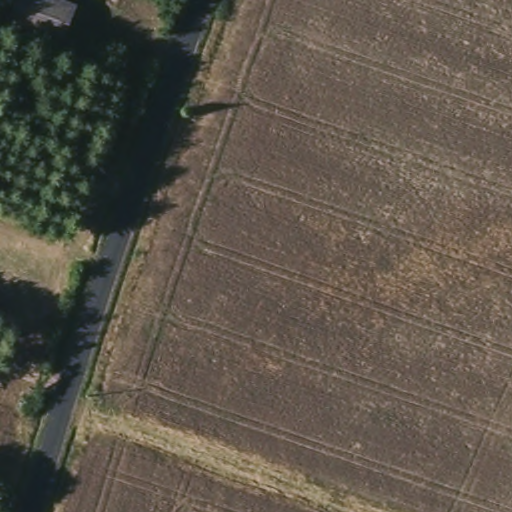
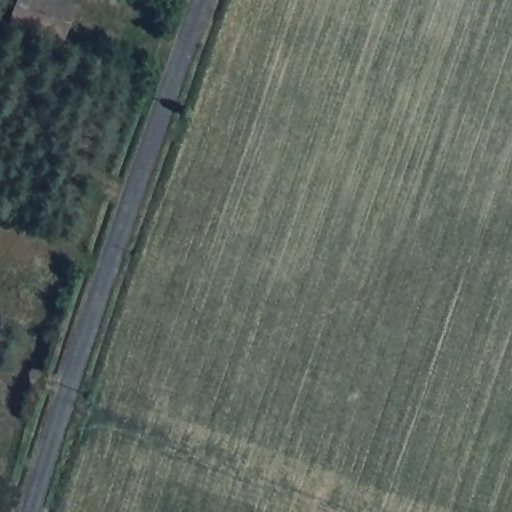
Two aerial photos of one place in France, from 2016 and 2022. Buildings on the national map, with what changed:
unchanged [(68,9),(58,39),(9,21),(17,0),(43,0),(68,9)]

